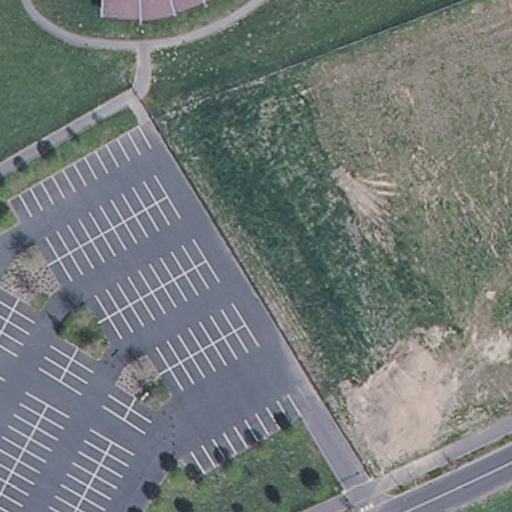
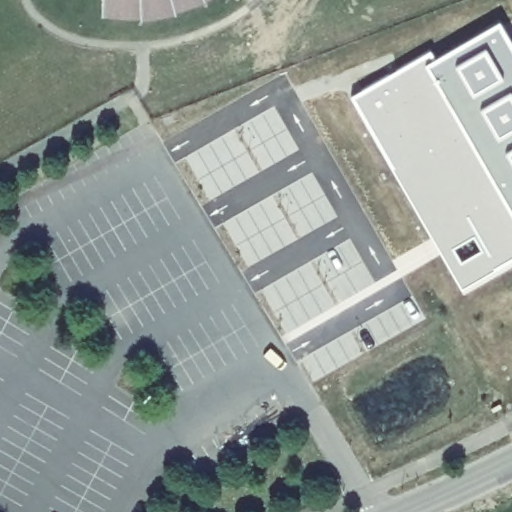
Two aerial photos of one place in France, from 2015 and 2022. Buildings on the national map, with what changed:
unchanged [(188,1),(178,4),(178,6),(151,13),(149,15),(136,16),(136,14),(121,14),(121,13),(95,9),(97,0),(196,0),(190,3),(188,1)]
new [(431,54),(437,65),(501,29),(512,49),(512,266),(464,295),(353,100),(431,54)]

